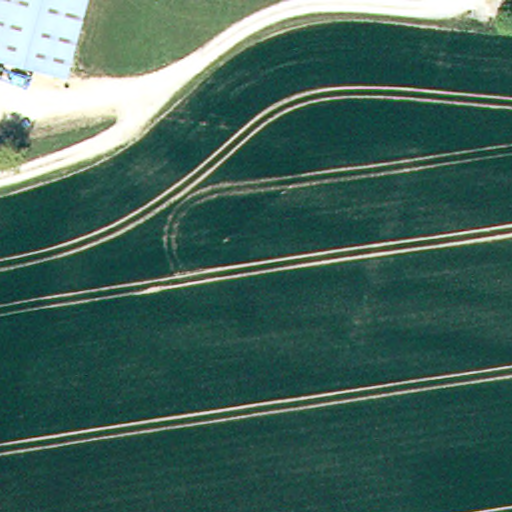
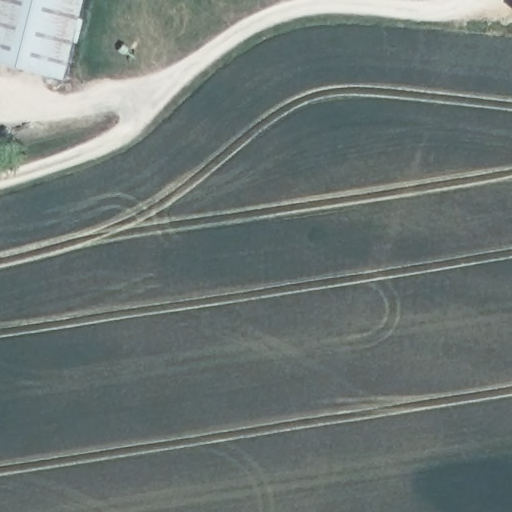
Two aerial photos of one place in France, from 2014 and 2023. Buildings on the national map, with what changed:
unchanged [(0,0),(80,0),(59,80),(0,65),(0,0)]

